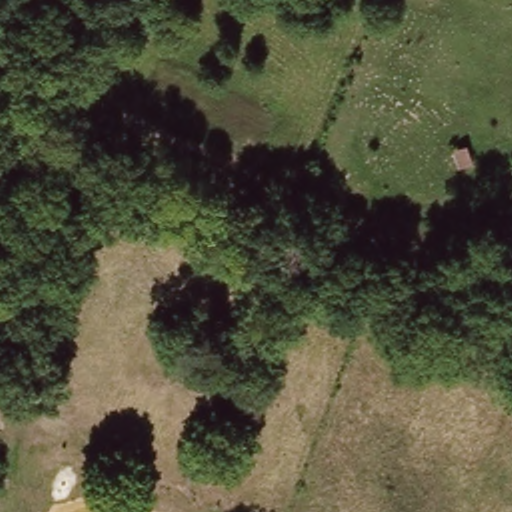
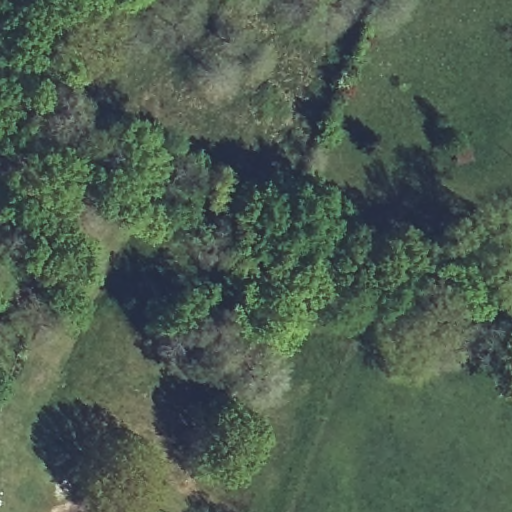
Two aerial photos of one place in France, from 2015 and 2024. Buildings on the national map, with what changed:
unchanged [(473,162),(464,167),(457,153),(466,148),(473,162)]

